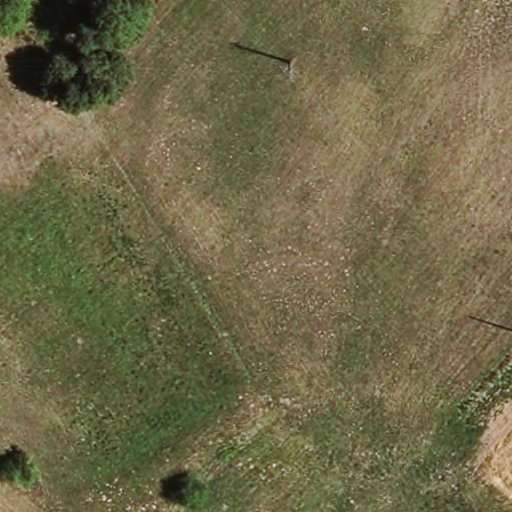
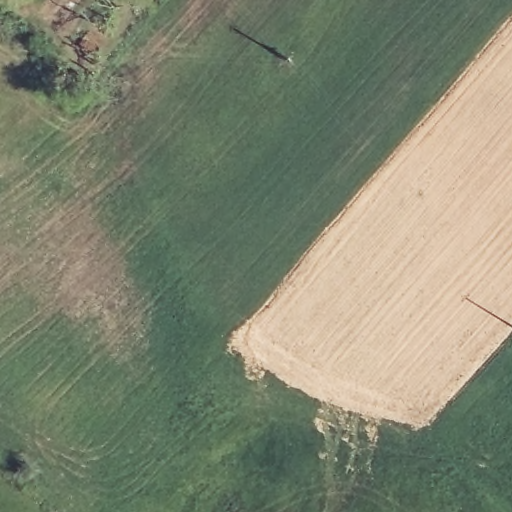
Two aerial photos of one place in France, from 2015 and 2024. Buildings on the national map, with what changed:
unchanged [(87,75),(72,65),(80,49),(97,59),(87,75)]

